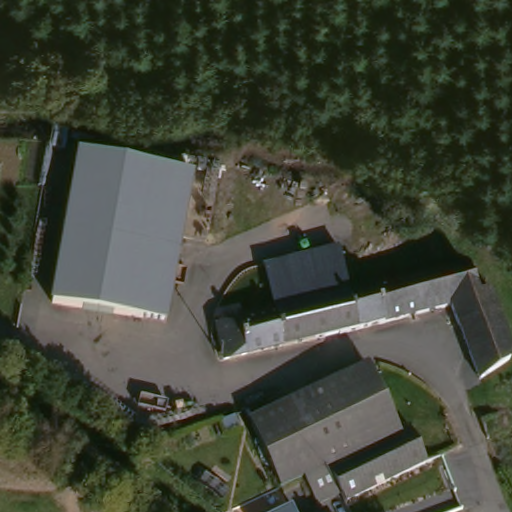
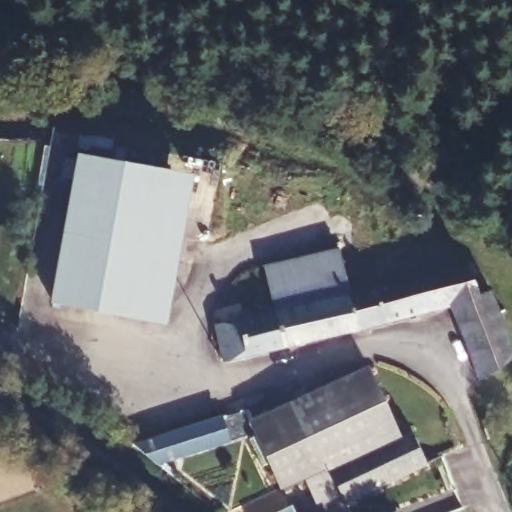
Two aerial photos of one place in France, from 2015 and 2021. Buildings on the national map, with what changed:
unchanged [(57,303),(81,156),(195,172),(171,323),(57,303)]
unchanged [(278,305),(270,261),(344,245),(355,286),(487,262),(512,323),(512,358),(487,380),(459,304),(366,326),(230,357),(218,323),(278,305)]
unchanged [(309,472),(285,482),(280,478),(251,406),(264,401),(268,411),(374,362),(406,432),(417,427),(432,462),(349,500),(347,494),(346,492),(322,502),(309,472)]
new [(223,414),(231,441),(159,463),(135,444),(223,414)]
unchanged [(304,512),(269,512),(298,499),(304,512)]
unchanged [(334,512),(317,512),(331,507),(334,512)]

